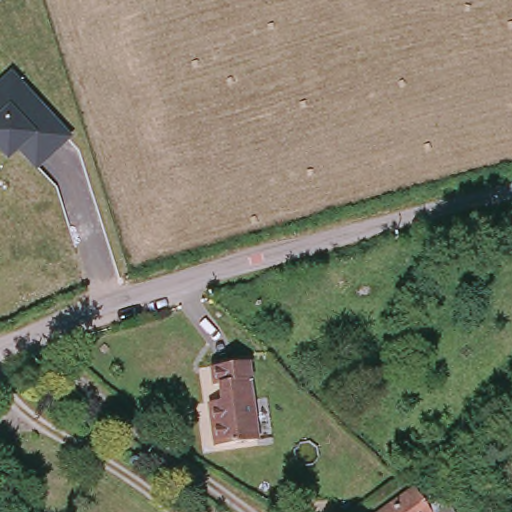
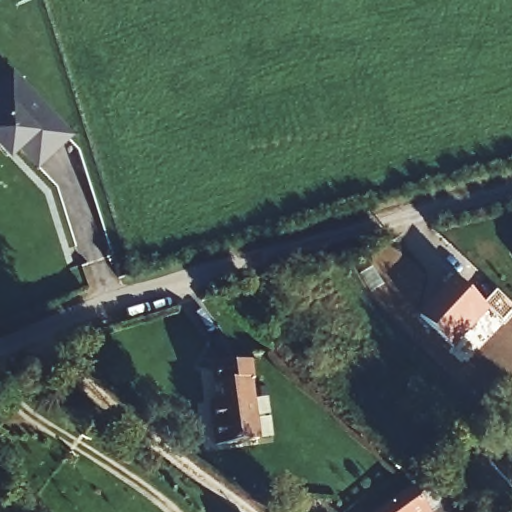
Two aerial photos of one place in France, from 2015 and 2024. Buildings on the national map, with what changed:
unchanged [(18,152),(7,162),(0,155),(0,82),(10,72),(72,138),(36,171),(18,152)]
new [(497,292),(512,306),(512,316),(503,325),(489,311),(455,350),(420,317),(455,280),(485,306),(497,292)]
unchanged [(251,369),(253,388),(247,389),(254,451),(217,457),(210,410),(222,409),(220,392),(212,393),(210,375),(251,369)]
unchanged [(423,498),(433,512),(390,512),(418,492),(423,498)]

